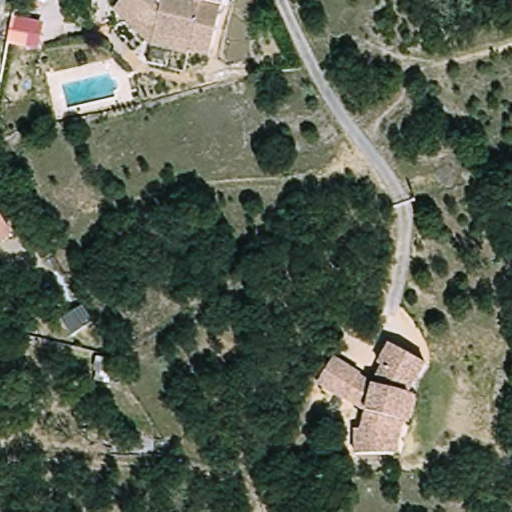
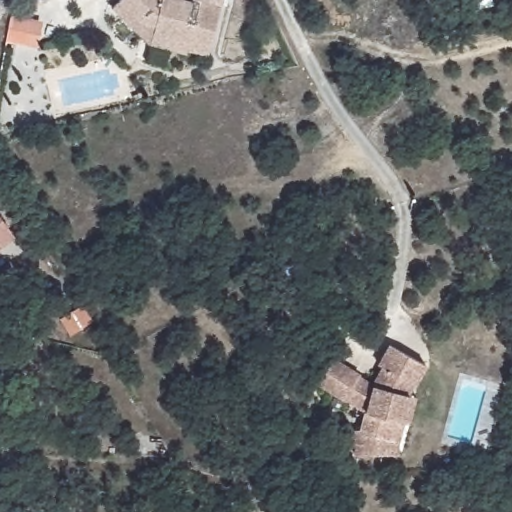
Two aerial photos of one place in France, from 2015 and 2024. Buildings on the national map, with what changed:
unchanged [(162,30),(164,23),(145,20),(123,1),(125,0),(194,0),(202,1),(202,0),(225,0),(216,50),(195,46),(196,36),(162,30)]
unchanged [(195,49),(160,44),(118,8),(123,1),(145,20),(164,23),(162,30),(196,36),(195,46),(195,49)]
unchanged [(41,22),(37,46),(6,40),(10,14),(41,22)]
unchanged [(15,230),(0,241),(0,209),(15,230)]
unchanged [(400,432),(398,443),(398,453),(387,453),(356,452),(357,427),(365,427),(370,409),(350,396),(347,397),(322,379),(340,354),(365,372),(360,379),(365,382),(370,385),(375,386),(377,379),(380,372),(385,366),(382,363),(395,344),(430,368),(418,385),(416,386),(410,394),(411,396),(420,398),(412,422),(405,419),(402,422),(400,432)]

